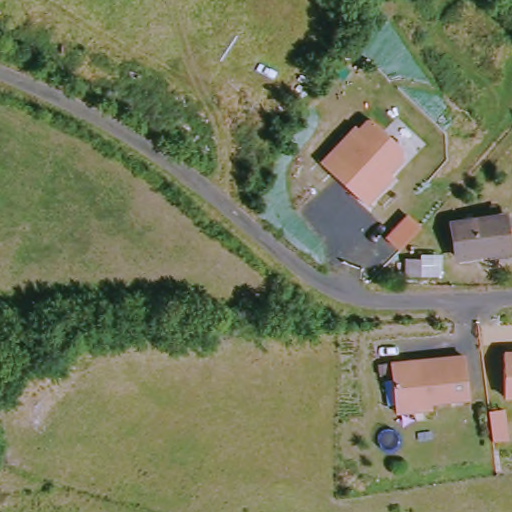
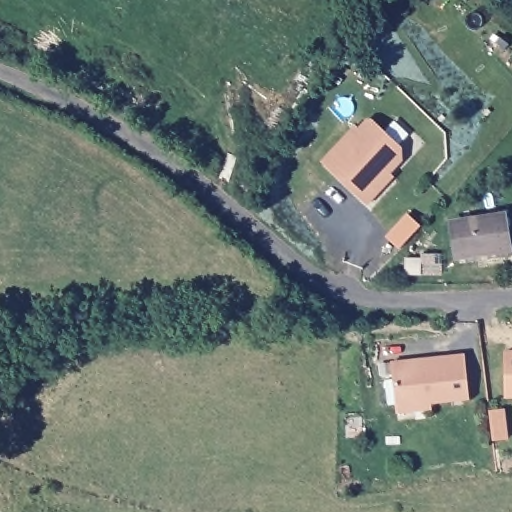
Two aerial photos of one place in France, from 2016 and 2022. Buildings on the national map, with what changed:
unchanged [(354,126),(358,129),(366,118),(372,118),(400,144),(402,160),(385,177),(389,181),(368,204),(322,163),(354,126)]
unchanged [(512,251),(465,261),(456,225),(506,214),(512,251)]
unchanged [(423,275),(405,274),(405,257),(424,256),(423,275)]
unchanged [(506,352),(512,352),(512,400),(508,400),(506,352)]
unchanged [(467,357),(473,398),(401,410),(395,368),(467,357)]

